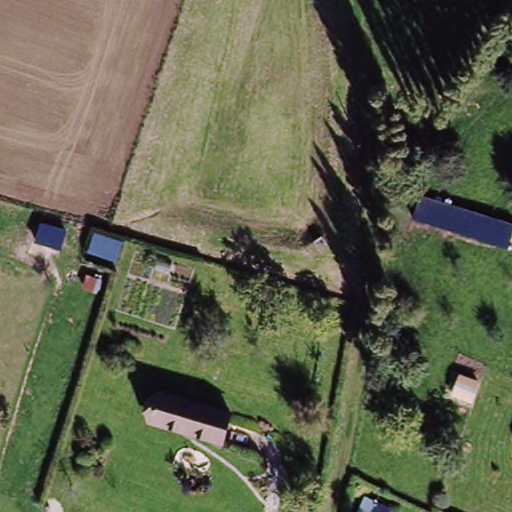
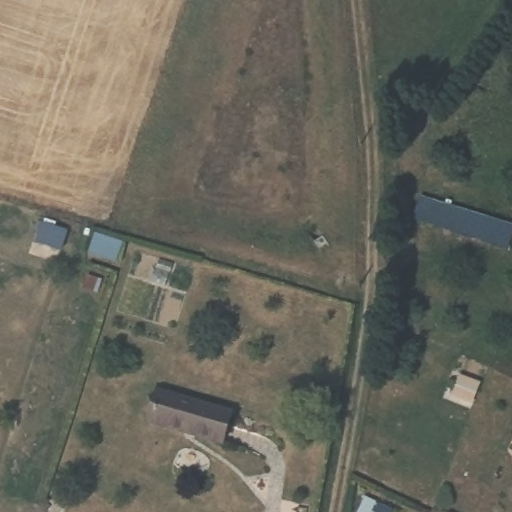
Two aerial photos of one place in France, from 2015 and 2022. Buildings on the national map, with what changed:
unchanged [(429,229),(438,202),(494,221),(484,248),(429,229)]
unchanged [(452,396),(461,376),(481,385),(473,403),(452,396)]
unchanged [(151,428),(156,398),(156,396),(232,411),(230,418),(226,442),(176,433),(151,428)]

